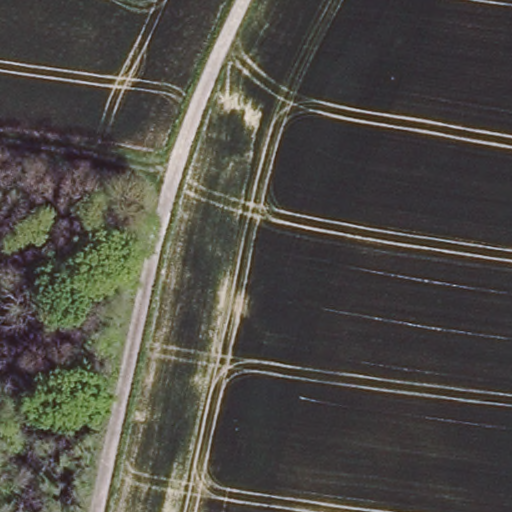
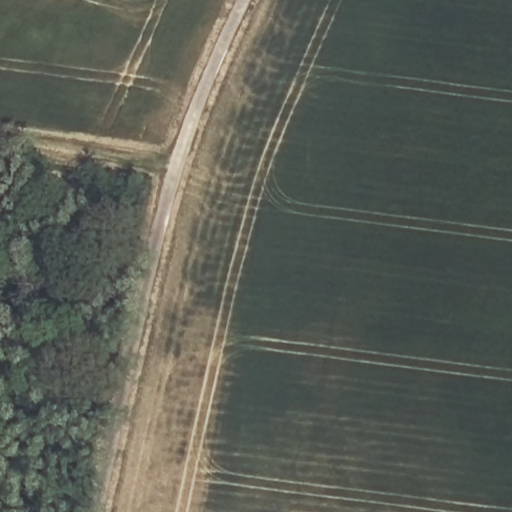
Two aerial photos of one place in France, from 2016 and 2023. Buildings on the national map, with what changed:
[]

